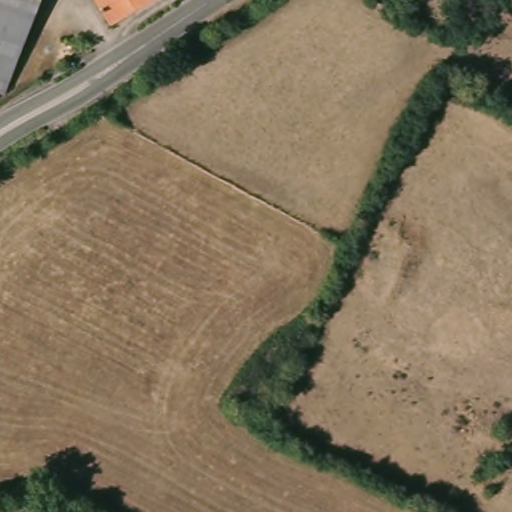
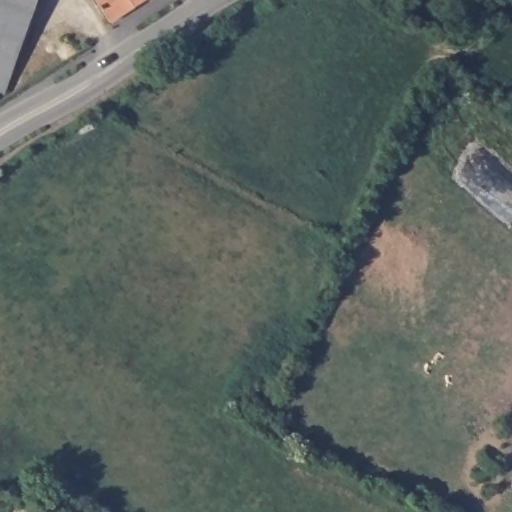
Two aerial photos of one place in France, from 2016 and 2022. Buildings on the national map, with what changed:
unchanged [(5,89),(0,87),(0,0),(38,0),(5,89)]
unchanged [(116,21),(101,0),(149,0),(116,21)]

